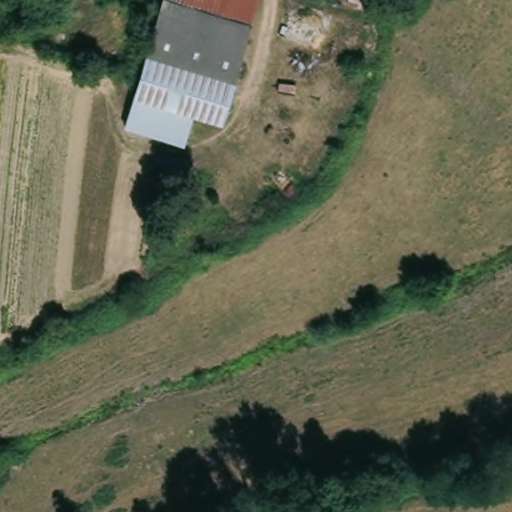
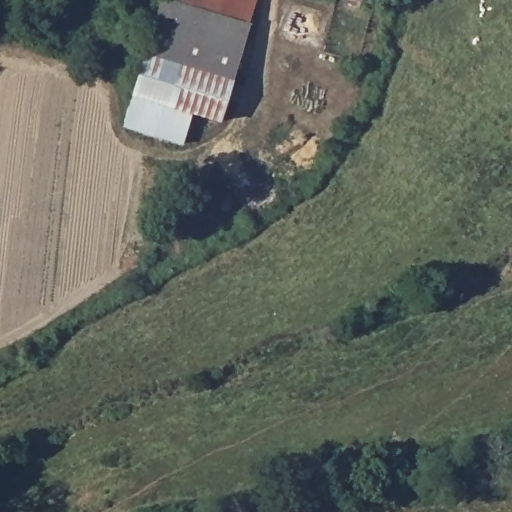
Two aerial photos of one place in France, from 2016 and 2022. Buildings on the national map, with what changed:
unchanged [(164,0),(258,0),(249,31),(163,3),(164,0)]
unchanged [(365,7),(353,2),(354,0),(367,0),(365,7)]
unchanged [(163,3),(249,31),(230,94),(219,127),(191,119),(134,100),(146,59),(163,3)]
unchanged [(191,119),(181,152),(124,134),(134,100),(191,119)]

